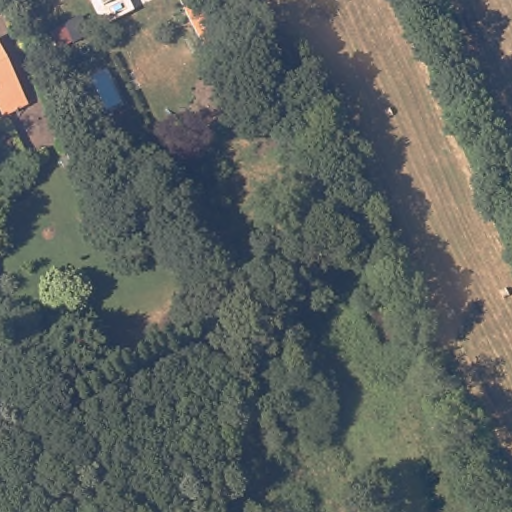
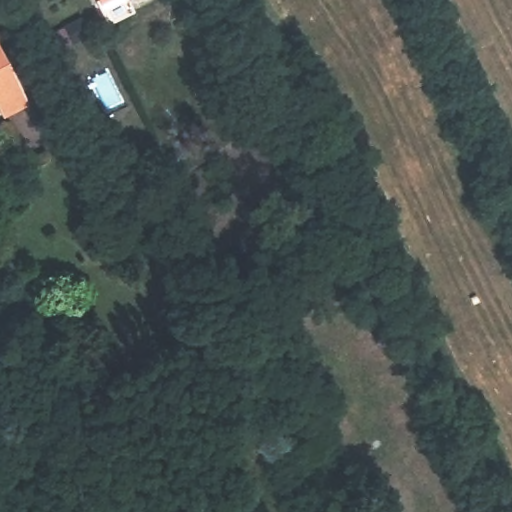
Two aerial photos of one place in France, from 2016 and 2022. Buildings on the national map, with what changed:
unchanged [(99,3),(98,0),(105,0),(99,3)]
unchanged [(127,1),(127,0),(129,0),(127,1)]
unchanged [(197,0),(217,40),(200,48),(181,8),(197,0)]
unchanged [(2,110),(0,106),(0,44),(28,96),(2,110)]

